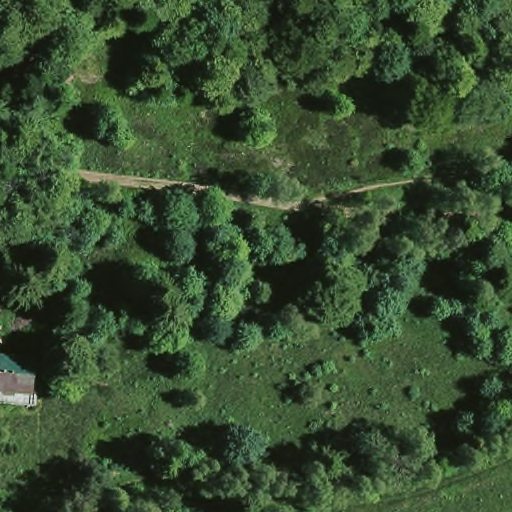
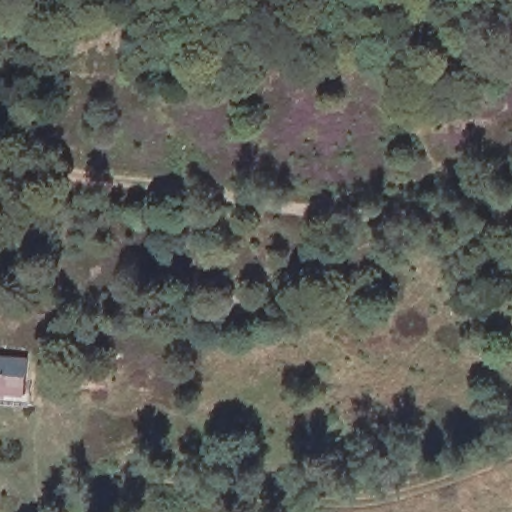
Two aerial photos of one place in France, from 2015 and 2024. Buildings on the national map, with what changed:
unchanged [(28,356),(27,381),(30,381),(28,408),(0,406),(0,354),(28,356)]

